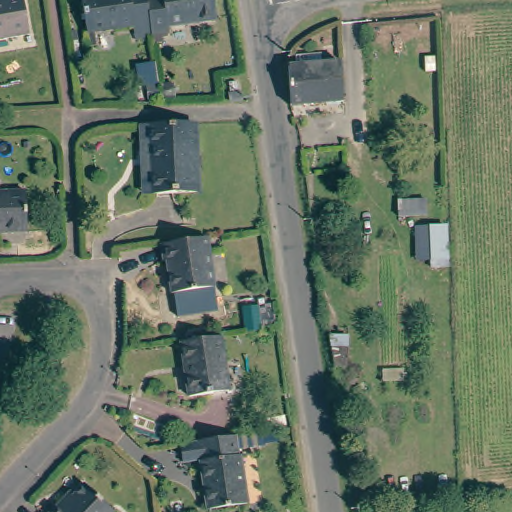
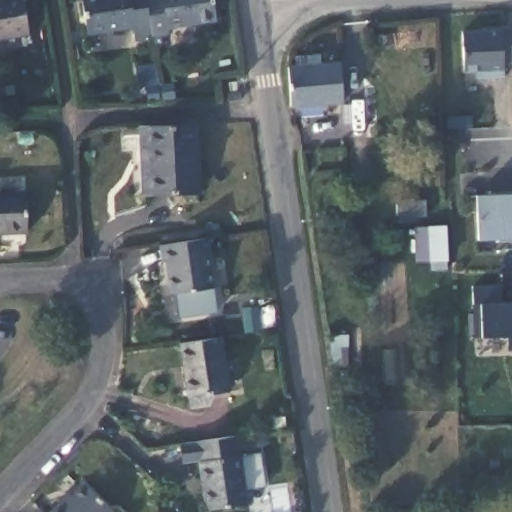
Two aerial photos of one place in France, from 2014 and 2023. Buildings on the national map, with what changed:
unchanged [(33,34),(0,39),(0,0),(28,0),(33,34)]
unchanged [(149,1),(153,36),(153,39),(135,41),(134,28),(89,34),(84,0),(148,0),(149,1)]
unchanged [(217,24),(168,29),(168,34),(153,36),(149,1),(148,0),(214,0),(217,24)]
new [(501,60),(501,75),(478,76),(477,68),(461,69),(459,29),(480,28),(480,26),(512,24),(512,59),(501,60)]
unchanged [(294,107),(289,77),(297,76),(295,66),(320,63),(322,73),(343,70),(346,100),(294,107)]
unchanged [(225,81),(233,80),(234,89),(225,89),(225,81)]
unchanged [(150,148),(149,124),(204,122),(207,189),(159,191),(153,191),(150,148)]
unchanged [(34,229),(0,230),(0,189),(32,188),(34,229)]
new [(495,236),(475,236),(473,192),(489,191),(489,189),(512,188),(512,238),(495,239),(495,236)]
unchanged [(450,225),(450,262),(420,261),(416,229),(450,225)]
unchanged [(176,291),(171,257),(168,258),(165,241),(210,234),(218,284),(176,291)]
new [(505,347),(504,333),(472,335),(469,283),(499,282),(500,300),(512,299),(512,346),(505,347)]
unchanged [(192,395),(184,340),(224,333),(232,388),(192,395)]
unchanged [(262,435),(264,448),(241,452),(242,458),(244,458),(251,506),(209,512),(203,464),(188,466),(185,446),(203,443),(262,435)]
unchanged [(83,483),(112,510),(110,512),(48,512),(58,502),(61,505),(83,483)]

